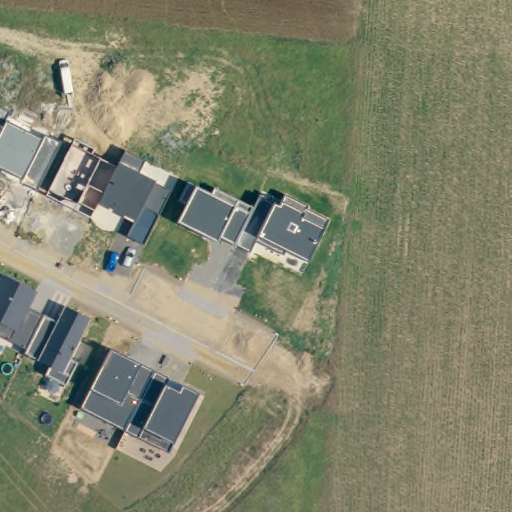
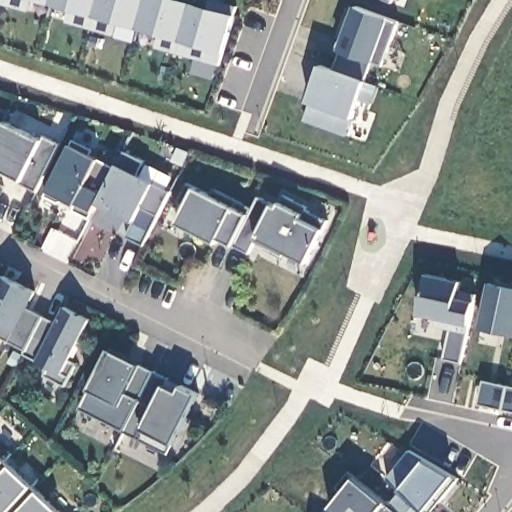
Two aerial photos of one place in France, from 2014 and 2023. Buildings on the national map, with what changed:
new [(28,11),(0,2),(0,0),(34,0),(28,11)]
new [(161,36),(117,22),(113,35),(67,22),(72,10),(38,0),(187,0),(211,8),(211,0),(215,0),(238,7),(219,65),(157,47),(161,36)]
new [(394,4),(384,0),(395,0),(394,4)]
new [(348,22),(352,23),(358,7),(400,22),(384,67),(374,63),(367,82),(335,71),(342,52),(337,50),(341,41),(348,22)]
new [(312,104),(310,103),(317,82),(315,82),(321,66),(335,71),(367,82),(380,87),(373,105),(361,101),(348,137),(306,121),(312,104)]
unchanged [(5,124),(42,142),(44,137),(60,145),(37,191),(22,181),(0,170),(0,110),(8,114),(5,124)]
new [(93,211),(90,218),(46,197),(48,192),(73,141),(118,165),(99,205),(93,211)]
unchanged [(118,165),(123,152),(144,162),(138,176),(154,184),(170,192),(143,245),(125,237),(135,222),(99,205),(118,165)]
unchanged [(185,185),(194,190),(212,198),(215,192),(253,211),(259,199),(274,206),(279,209),(281,205),(284,197),(306,208),(305,212),(327,221),(322,231),(306,262),(285,252),(282,257),(254,242),(248,255),(233,247),(218,239),(216,244),(177,225),(187,206),(176,202),(185,185)]
unchanged [(37,293),(28,311),(57,325),(65,307),(90,320),(69,360),(77,365),(65,386),(45,376),(51,368),(38,362),(25,356),(27,351),(0,337),(0,280),(2,276),(37,293)]
new [(429,276),(463,283),(461,293),(478,297),(464,365),(445,361),(452,331),(438,328),(440,320),(421,315),(429,276)]
new [(491,282),(512,287),(512,335),(480,328),(491,282)]
unchanged [(89,390),(109,351),(138,366),(153,373),(182,388),(196,397),(173,445),(168,454),(81,410),(89,390)]
new [(485,381),(512,387),(512,411),(480,404),(485,381)]
new [(432,512),(402,512),(392,503),(401,490),(389,478),(410,452),(426,461),(452,476),(456,479),(432,512)]
new [(14,512),(10,509),(8,512),(0,512),(0,457),(60,512),(14,512)]

